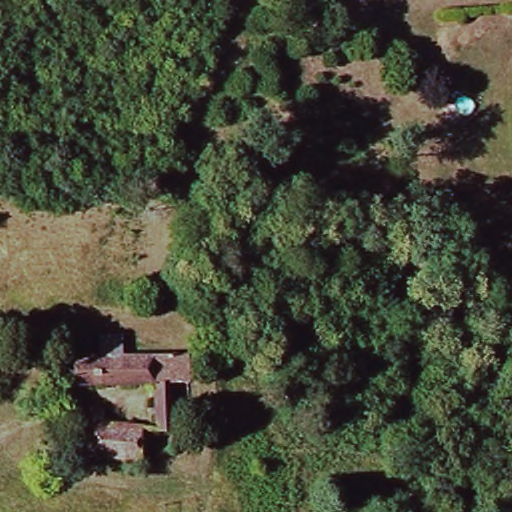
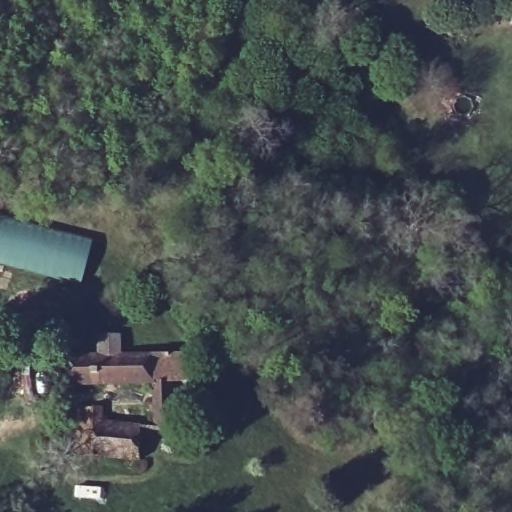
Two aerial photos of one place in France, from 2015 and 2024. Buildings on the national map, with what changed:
new [(82,284),(0,263),(0,216),(93,240),(82,284)]
unchanged [(152,385),(66,383),(67,352),(102,352),(102,335),(127,335),(127,353),(192,355),(191,384),(173,383),(172,425),(152,424),(152,385)]
unchanged [(94,412),(93,428),(137,431),(135,457),(74,453),(77,411),(94,412)]

